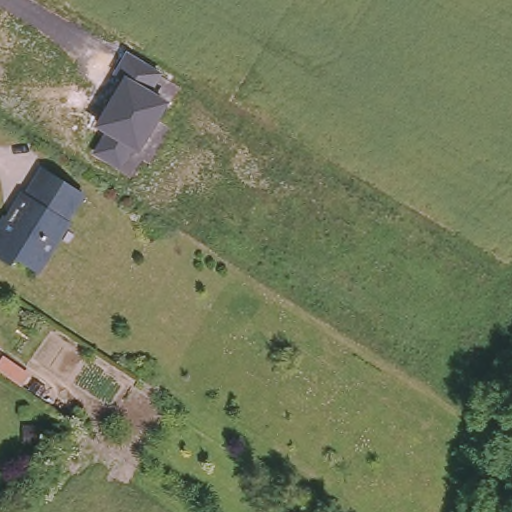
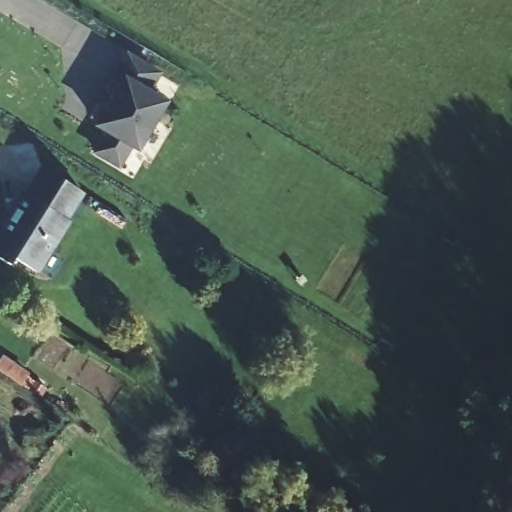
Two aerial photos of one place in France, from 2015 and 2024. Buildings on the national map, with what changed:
unchanged [(163,71),(152,90),(169,100),(140,152),(132,148),(120,169),(92,152),(104,132),(92,126),(115,85),(109,82),(126,51),(163,71)]
unchanged [(73,210),(77,212),(40,271),(15,255),(12,260),(0,251),(0,231),(12,213),(15,216),(24,201),(20,199),(30,186),(32,189),(52,160),(90,184),(73,210)]

